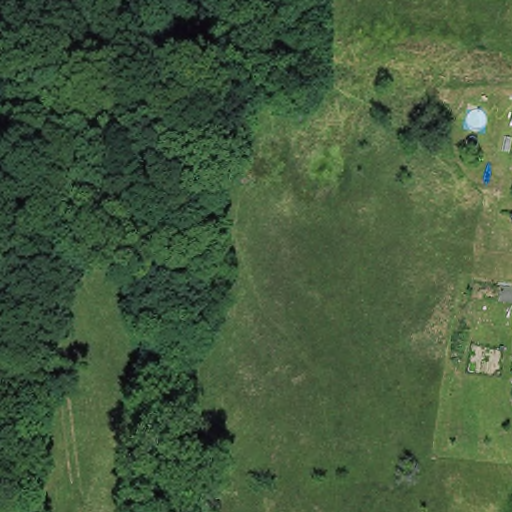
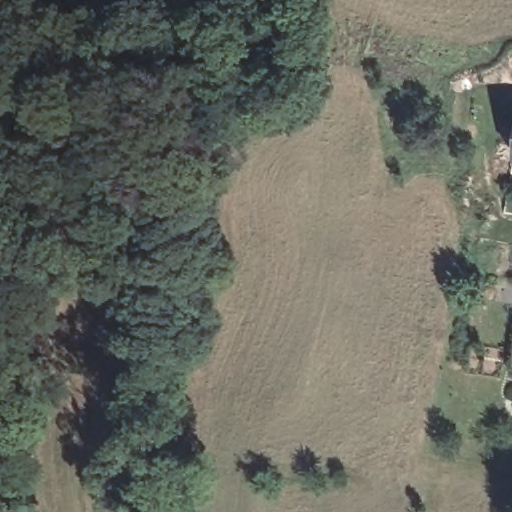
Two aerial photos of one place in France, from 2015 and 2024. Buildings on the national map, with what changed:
unchanged [(512,131),(512,159),(506,158),(512,131)]
unchanged [(504,219),(512,213),(512,226),(511,227),(504,219)]

